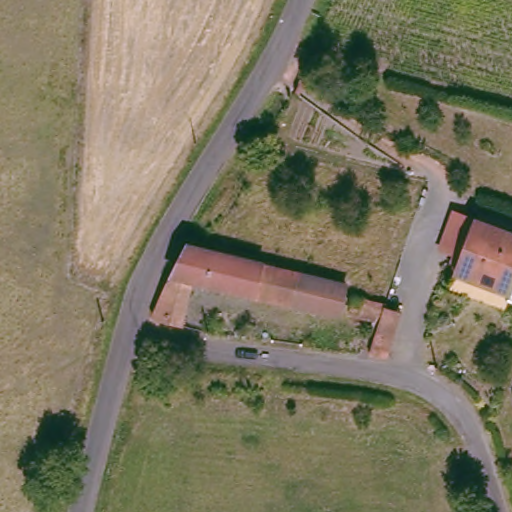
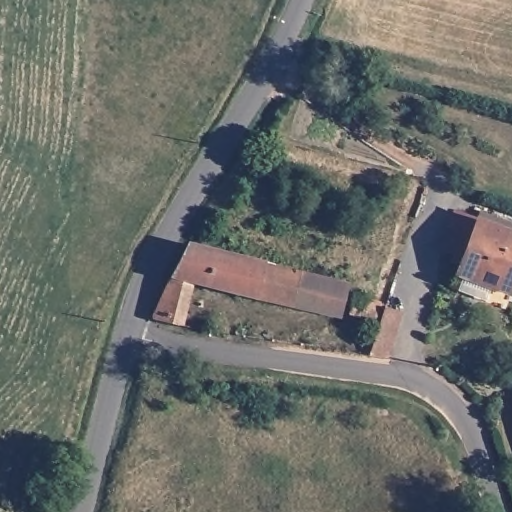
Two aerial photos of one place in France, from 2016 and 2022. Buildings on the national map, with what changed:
unchanged [(512,229),(512,282),(509,291),(454,270),(475,215),(512,229)]
unchanged [(337,319),(312,313),(190,285),(177,331),(149,322),(164,283),(186,250),(319,288),(343,295),(337,319)]
unchanged [(382,361),(365,358),(377,323),(344,313),(349,298),(382,307),(394,314),(382,361)]

